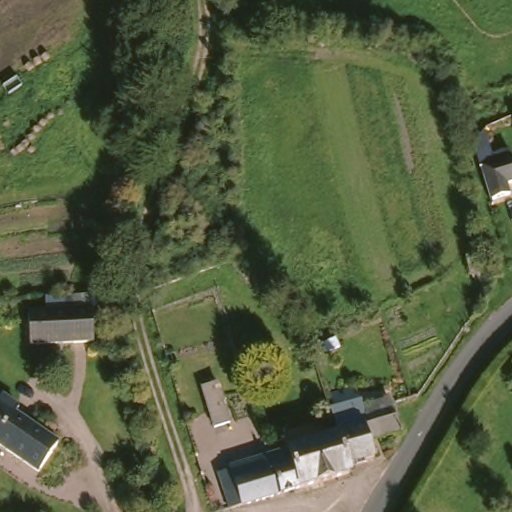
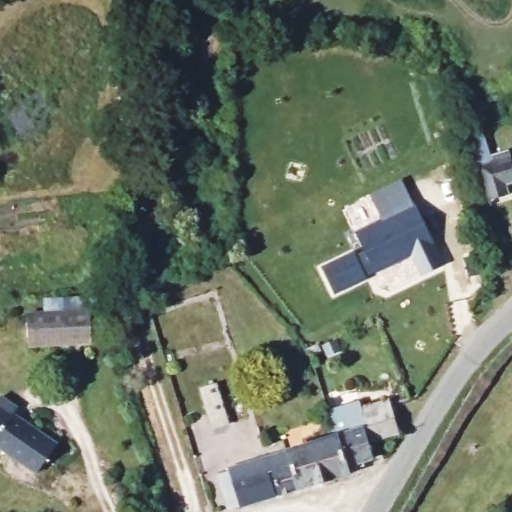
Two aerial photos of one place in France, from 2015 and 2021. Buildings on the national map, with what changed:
unchanged [(125,0),(134,0),(126,3),(125,0)]
unchanged [(512,171),(512,184),(503,187),(507,199),(490,204),(479,170),(472,149),(483,136),(491,166),(508,160),(512,171)]
new [(358,254),(368,250),(360,230),(387,219),(377,193),(410,181),(418,202),(420,201),(427,220),(446,268),(417,279),(408,258),(376,272),(374,267),(365,271),(366,274),(333,287),(323,262),(356,249),(358,254)]
unchanged [(473,267),(472,259),(471,249),(481,247),(482,254),(483,265),(473,267)]
unchanged [(101,303),(103,335),(39,340),(36,308),(101,303)]
unchanged [(214,379),(227,419),(212,424),(200,383),(214,379)]
unchanged [(345,432),(337,409),(367,399),(369,405),(394,397),(404,432),(376,442),(381,456),(354,464),(352,464),(342,433),(345,432)]
unchanged [(19,409),(14,418),(57,441),(43,468),(30,461),(0,443),(0,399),(19,409)]
unchanged [(314,442),(312,436),(318,434),(319,440),(342,433),(352,464),(354,464),(357,473),(332,481),(302,489),(289,449),(314,442)]
unchanged [(231,491),(241,487),(235,466),(289,449),(302,489),(236,509),(231,491)]

